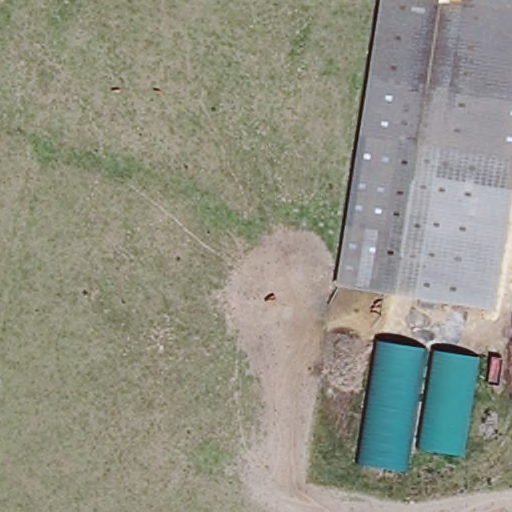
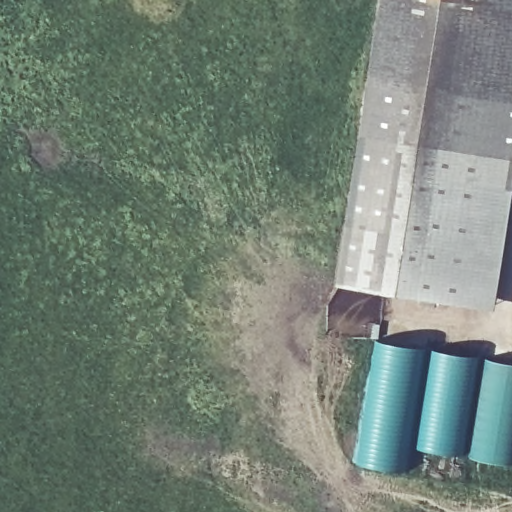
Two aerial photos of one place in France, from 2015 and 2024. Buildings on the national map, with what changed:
unchanged [(336,287),(380,0),(413,0),(412,2),(407,1),(378,294),(336,287)]
unchanged [(407,1),(412,2),(413,0),(512,0),(512,268),(507,309),(468,304),(378,294),(407,1)]
unchanged [(478,357),(462,456),(411,447),(406,473),(357,464),(377,339),(478,357)]
new [(494,461),(484,460),(485,453),(482,453),(490,428),(481,426),(491,359),(512,363),(512,456),(495,453),(494,461)]

